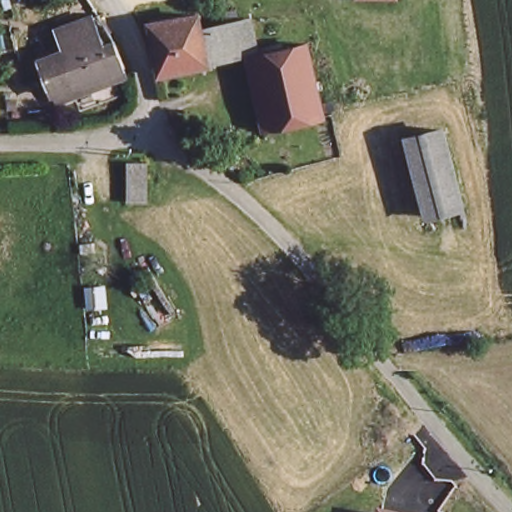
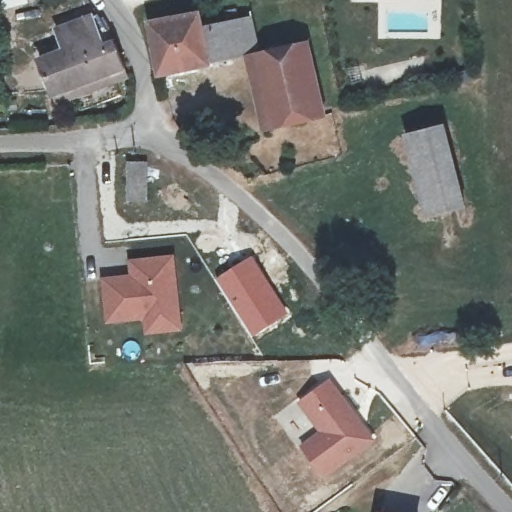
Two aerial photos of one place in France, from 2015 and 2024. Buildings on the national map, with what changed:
unchanged [(159,71),(147,23),(197,13),(202,33),(207,62),(159,71)]
unchanged [(55,97),(38,69),(63,55),(55,37),(92,19),(119,69),(55,97)]
unchanged [(207,62),(202,33),(251,24),(258,53),(207,62)]
unchanged [(310,44),(328,114),(275,124),(258,53),(310,44)]
unchanged [(410,135),(451,130),(462,208),(421,213),(410,135)]
unchanged [(151,200),(130,199),(129,159),(148,159),(151,200)]
new [(143,320),(106,324),(101,277),(130,274),(129,259),(175,254),(182,331),(145,334),(143,320)]
new [(252,254),(290,313),(252,337),(214,278),(252,254)]
new [(314,372),(359,430),(310,467),(288,438),(308,423),(285,394),(314,372)]
unchanged [(398,512),(374,512),(374,506),(398,512)]

